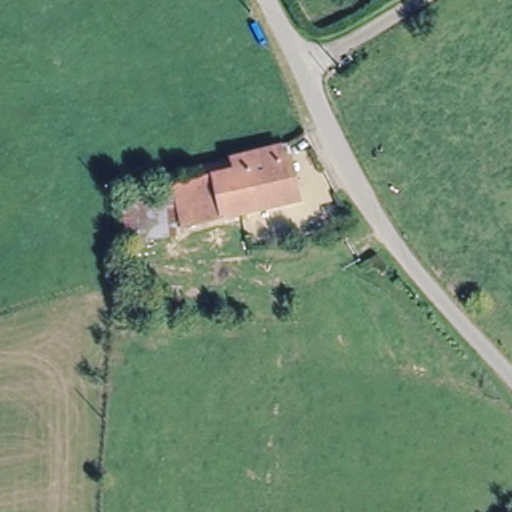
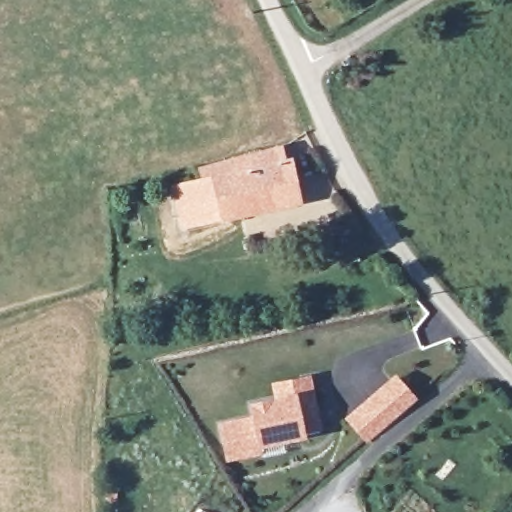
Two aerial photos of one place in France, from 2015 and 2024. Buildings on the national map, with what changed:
unchanged [(202,165),(223,159),(255,154),(291,146),(302,201),(224,218),(216,178),(206,180),(202,165)]
unchanged [(183,227),(175,187),(206,180),(216,178),(224,218),(183,227)]
new [(419,397),(366,443),(347,419),(396,373),(419,397)]
new [(321,429),(303,430),(304,437),(259,447),(261,456),(226,462),(219,423),(251,410),(250,404),(275,397),(272,383),(311,375),(321,429)]

